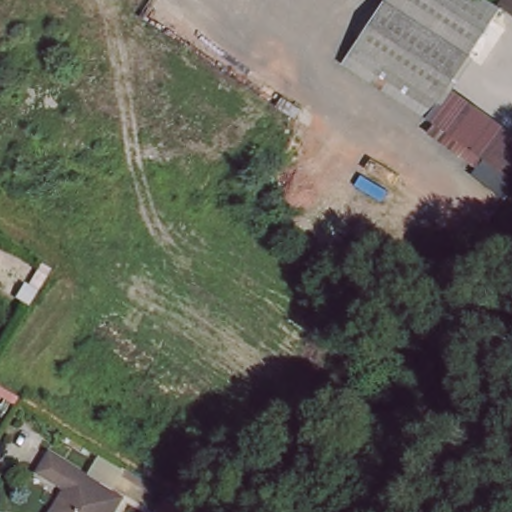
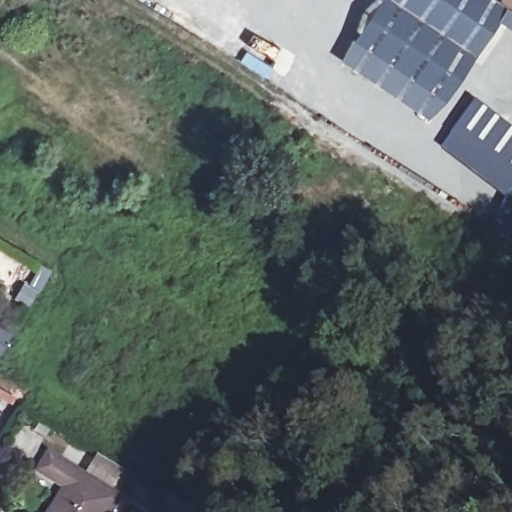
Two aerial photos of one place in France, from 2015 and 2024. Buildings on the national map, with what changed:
unchanged [(389,1),(390,0),(494,0),(498,2),(507,8),(476,56),(389,1)]
unchanged [(511,0),(512,0),(512,11),(507,8),(511,0)]
unchanged [(476,56),(468,69),(415,35),(381,14),(389,1),(476,56)]
unchanged [(381,14),(415,35),(468,69),(447,103),(359,46),(381,14)]
unchanged [(447,103),(436,119),(349,65),(359,46),(447,103)]
unchanged [(512,130),(512,167),(508,173),(447,126),(469,98),(512,130)]
unchanged [(68,484),(43,468),(53,452),(118,495),(106,512),(49,512),(68,484)]

